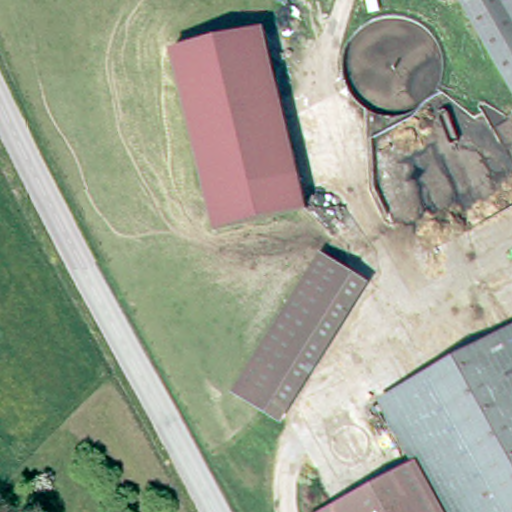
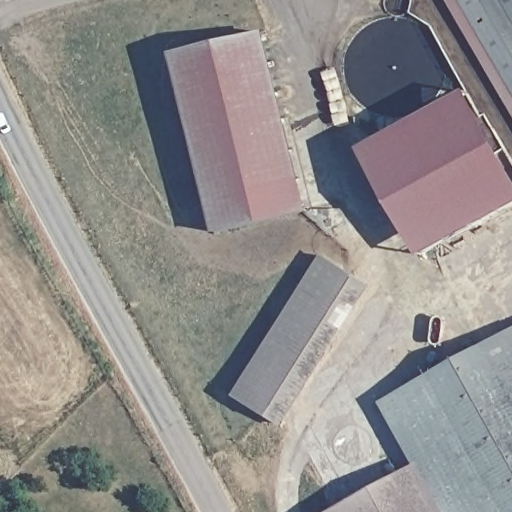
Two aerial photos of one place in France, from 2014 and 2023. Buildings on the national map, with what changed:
unchanged [(512,10),(512,89),(460,0),(506,0),(512,10)]
unchanged [(512,10),(506,0),(512,0),(512,10)]
unchanged [(214,233),(175,57),(265,37),(305,213),(214,233)]
new [(512,160),(512,206),(426,254),(368,149),(473,90),(512,160)]
unchanged [(271,414),(242,396),(310,283),(326,256),(342,266),(356,275),(271,414)]
unchanged [(373,285),(287,424),(271,414),(356,275),(373,285)]
unchanged [(512,329),(512,512),(442,512),(415,462),(381,401),(512,329)]
unchanged [(442,512),(418,512),(396,473),(415,462),(442,512)]
unchanged [(418,512),(327,512),(396,473),(418,512)]

